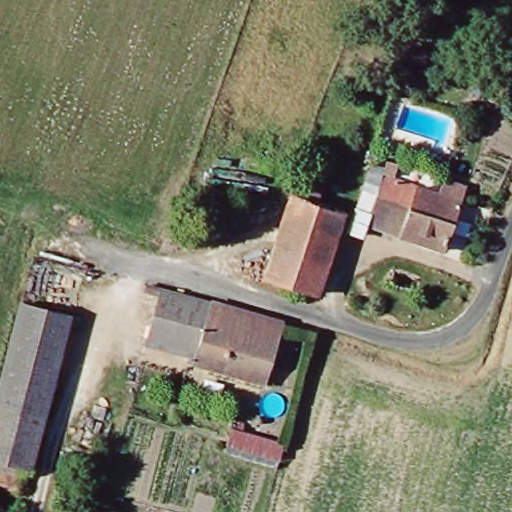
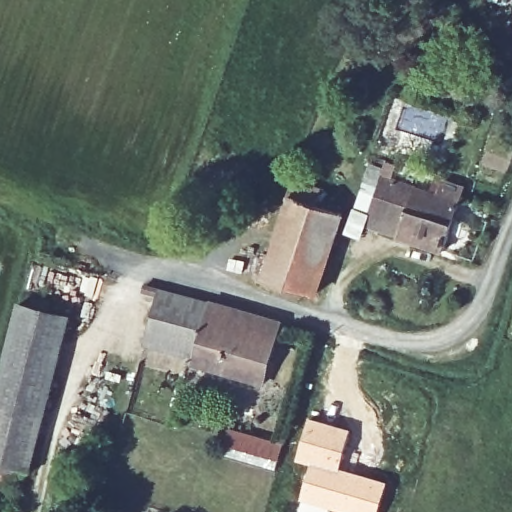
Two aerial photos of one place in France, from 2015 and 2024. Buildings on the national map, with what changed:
unchanged [(386,198),(393,174),(449,191),(454,175),(473,180),(453,245),(408,233),(377,223),(386,198)]
unchanged [(336,232),(320,287),(274,274),(297,192),(343,206),(336,232)]
unchanged [(171,291),(285,319),(271,372),(157,342),(171,291)]
unchanged [(37,465),(0,456),(0,413),(30,302),(77,314),(37,465)]
new [(308,417),(352,428),(341,468),(311,463),(310,467),(295,462),(308,417)]
unchanged [(282,443),(276,468),(224,453),(231,428),(282,443)]
new [(310,467),(311,463),(341,468),(388,481),(379,512),(335,512),(330,511),(329,512),(296,512),(310,467)]
demolished [(188,512),(123,512),(127,496),(188,512)]

